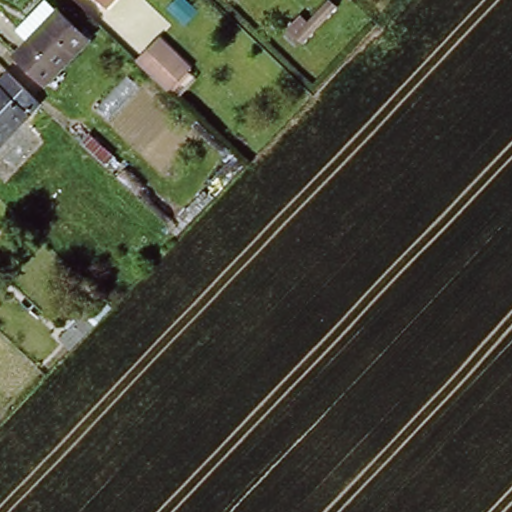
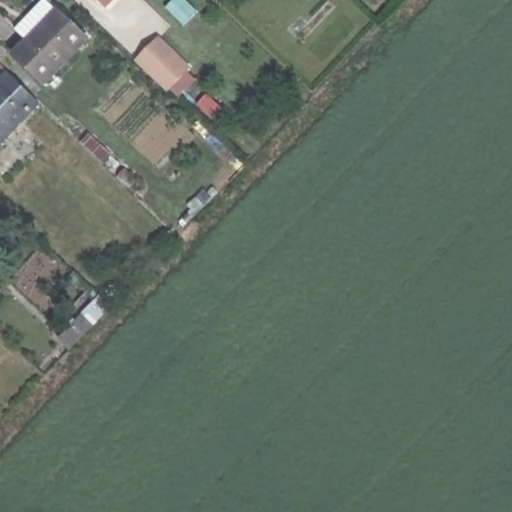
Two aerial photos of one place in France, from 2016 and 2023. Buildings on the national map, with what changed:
unchanged [(93,0),(111,0),(102,9),(93,0)]
unchanged [(285,36),(321,0),(337,0),(292,44),(285,36)]
unchanged [(14,57),(37,32),(57,11),(65,18),(88,41),(45,86),(14,57)]
unchanged [(171,88),(168,92),(136,59),(160,36),(191,67),(188,70),(196,78),(179,96),(171,88)]
unchanged [(0,80),(7,72),(40,103),(0,145),(0,80)]
unchanged [(74,347),(63,337),(85,312),(96,323),(74,347)]

